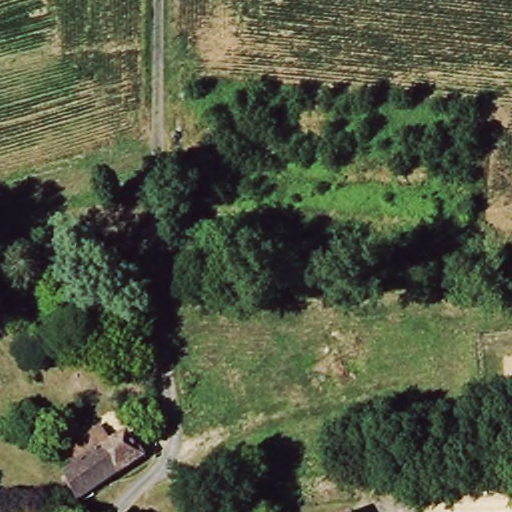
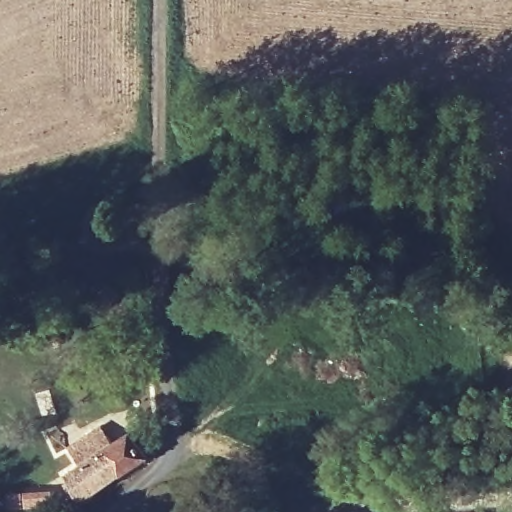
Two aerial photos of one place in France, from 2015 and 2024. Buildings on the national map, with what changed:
unchanged [(128,425),(150,455),(78,503),(61,475),(80,459),(77,445),(105,425),(113,437),(128,425)]

